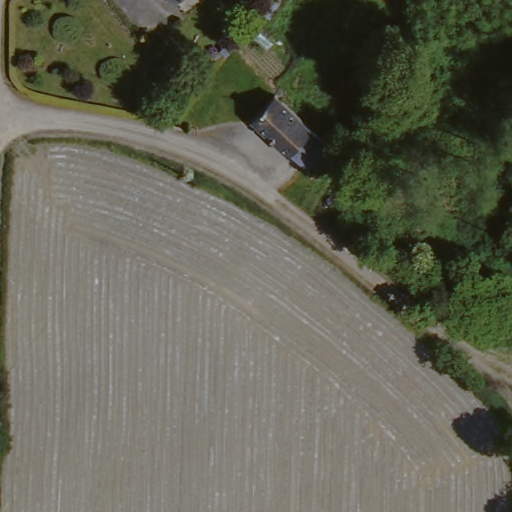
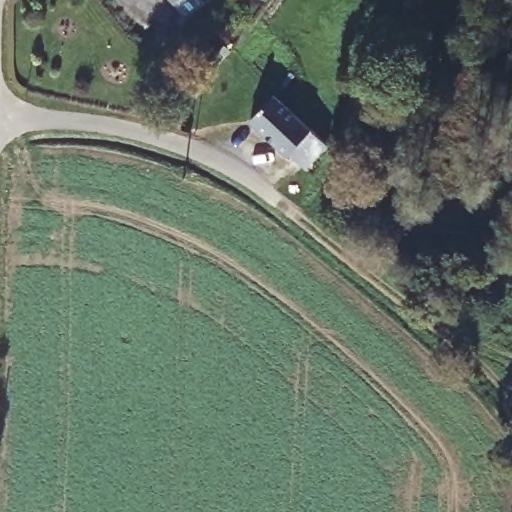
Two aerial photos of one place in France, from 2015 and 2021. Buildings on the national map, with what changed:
unchanged [(169,0),(178,0),(172,5),(169,0)]
unchanged [(305,175),(288,159),(287,160),(253,125),(263,115),(251,101),(262,90),(265,87),(278,101),(311,135),(321,146),(327,152),(305,175)]

